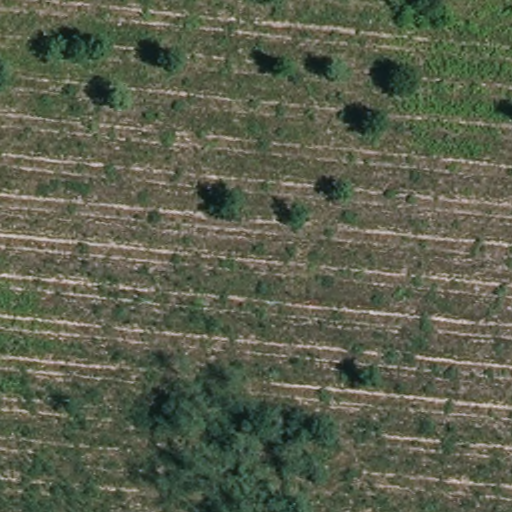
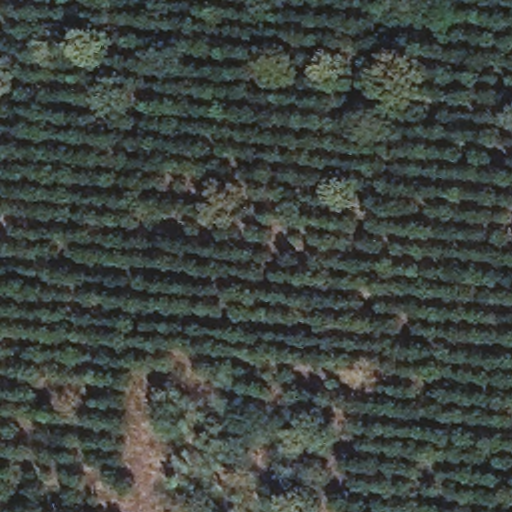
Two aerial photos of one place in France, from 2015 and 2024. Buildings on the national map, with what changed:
[]

